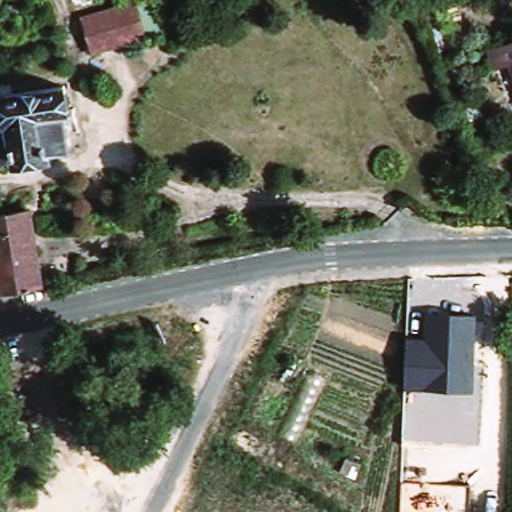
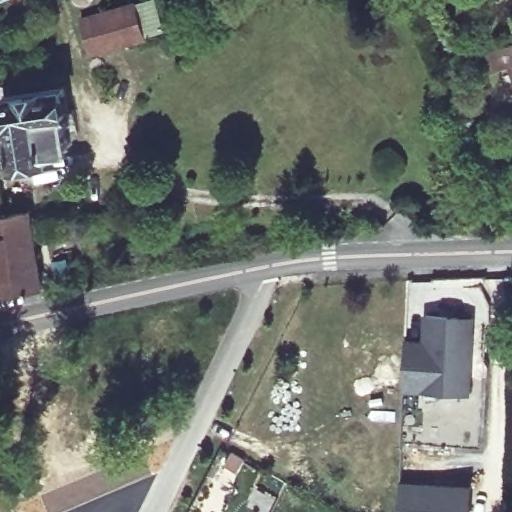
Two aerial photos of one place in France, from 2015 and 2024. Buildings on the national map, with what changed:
unchanged [(154,37),(105,50),(95,19),(147,5),(154,37)]
unchanged [(506,70),(498,52),(512,46),(512,67),(506,70)]
unchanged [(85,109),(79,112),(85,143),(62,147),(64,155),(32,161),(25,121),(21,120),(17,95),(77,85),(85,109)]
unchanged [(0,292),(0,215),(40,211),(50,286),(0,292)]
unchanged [(410,353),(427,354),(428,314),(475,316),(473,389),(408,387),(410,353)]
new [(475,482),(472,512),(401,512),(402,480),(475,482)]

